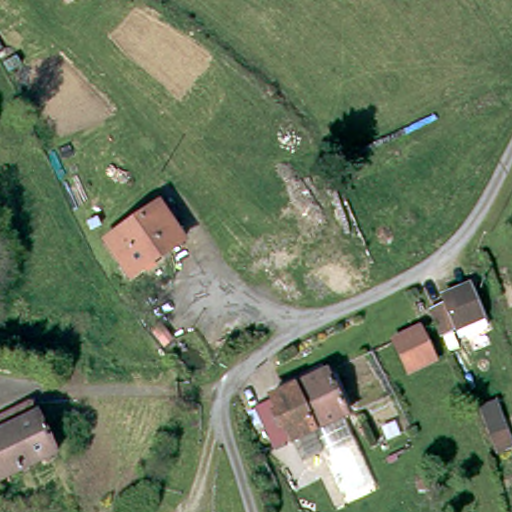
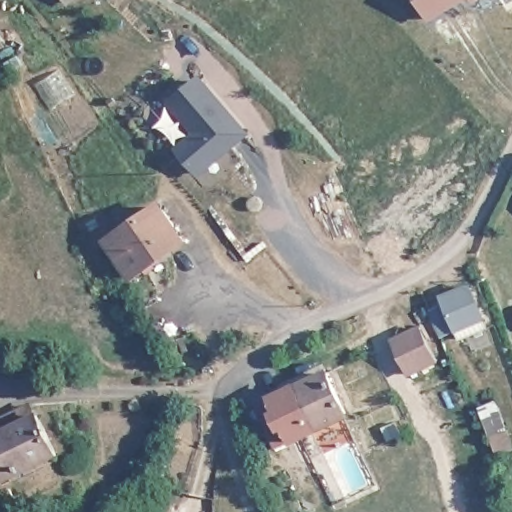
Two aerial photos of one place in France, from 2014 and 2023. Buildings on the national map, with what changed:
new [(68,2),(67,0),(71,0),(68,2)]
new [(427,17),(417,0),(457,0),(427,17)]
new [(167,102),(200,75),(252,134),(200,177),(174,147),(192,132),(167,102)]
unchanged [(132,278),(109,243),(161,208),(185,243),(132,278)]
unchanged [(462,332),(457,322),(445,290),(470,281),(482,313),(487,323),(462,332)]
unchanged [(435,367),(407,380),(392,345),(419,332),(435,367)]
unchanged [(348,412),(294,437),(274,398),(328,373),(348,412)]
unchanged [(487,409),(503,403),(512,427),(512,432),(499,437),(487,409)]
unchanged [(39,407),(45,418),(63,460),(0,488),(0,421),(21,412),(39,407)]

